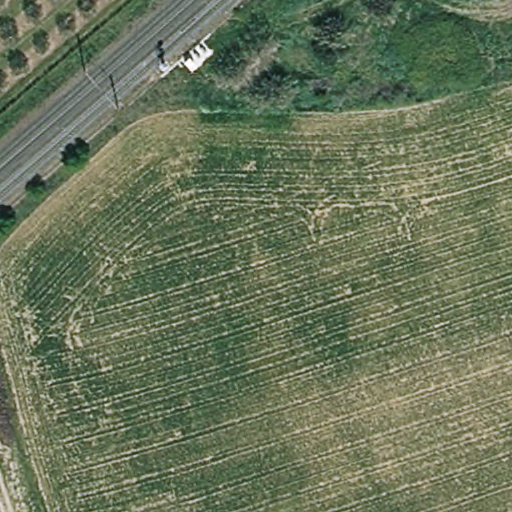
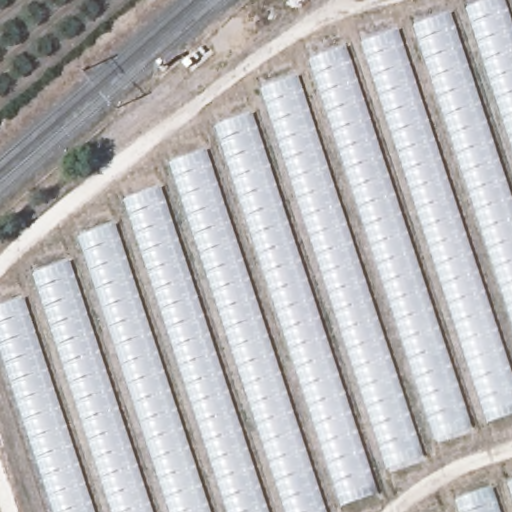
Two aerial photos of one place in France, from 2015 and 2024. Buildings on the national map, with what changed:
new [(422,457),(371,477),(377,495),(329,512),(54,512),(0,347),(0,306),(38,292),(33,274),(85,256),(79,236),(131,219),(124,199),(175,181),(169,163),(222,144),(216,125),(266,109),(259,89),(313,71),(310,60),(491,0),(504,0),(512,25),(512,415),(419,447),(422,457)]
new [(458,511),(455,500),(512,482),(512,512),(455,512),(458,511)]

